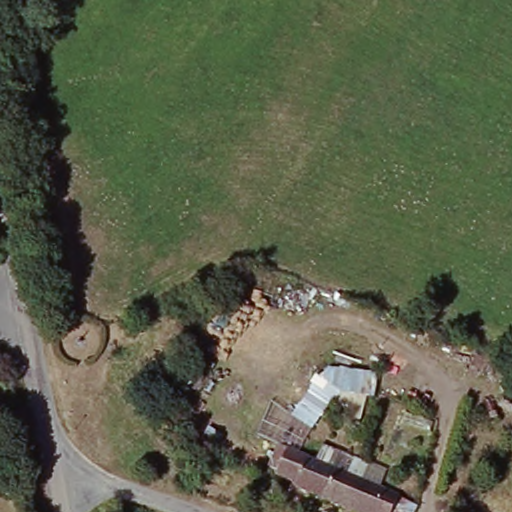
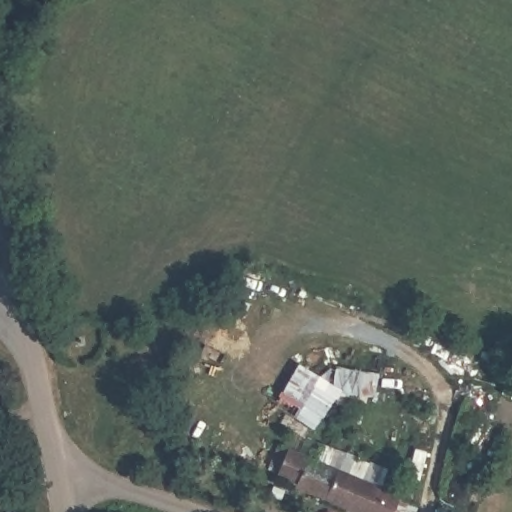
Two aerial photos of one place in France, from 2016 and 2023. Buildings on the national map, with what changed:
unchanged [(298,422),(319,379),(334,372),(381,383),(376,399),(368,398),(359,432),(345,428),(347,409),(330,409),(321,438),(298,422)]
unchanged [(412,499),(407,512),(340,512),(295,492),(299,481),(285,475),(288,470),(273,464),(278,450),(321,466),(412,499)]

